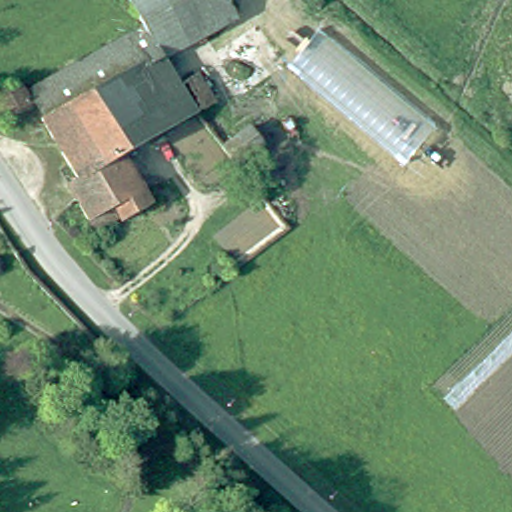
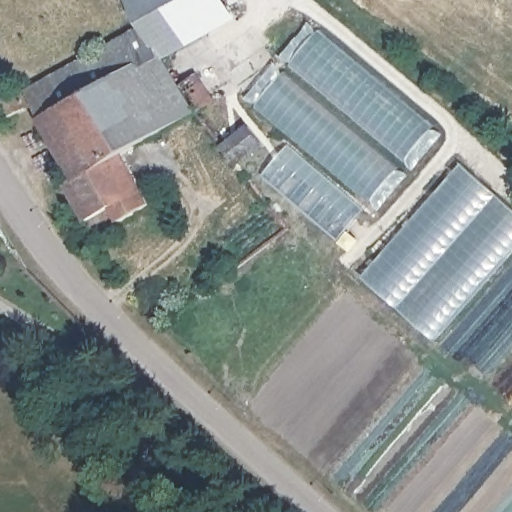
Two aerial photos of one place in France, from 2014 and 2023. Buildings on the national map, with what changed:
unchanged [(128,0),(230,0),(158,46),(143,23),(128,0)]
unchanged [(143,23),(158,46),(164,54),(45,113),(32,88),(143,23)]
unchanged [(436,129),(405,167),(288,68),(320,29),(436,129)]
unchanged [(164,54),(182,83),(200,74),(215,97),(195,109),(122,151),(154,205),(122,222),(114,207),(91,219),(70,183),(77,177),(40,117),(45,113),(164,54)]
new [(255,108),(285,73),(399,167),(370,202),(255,108)]
unchanged [(10,118),(0,103),(0,94),(20,84),(32,106),(10,118)]
unchanged [(257,130),(270,146),(245,168),(231,151),(257,130)]
new [(462,163),(512,206),(512,251),(435,340),(362,276),(462,163)]

